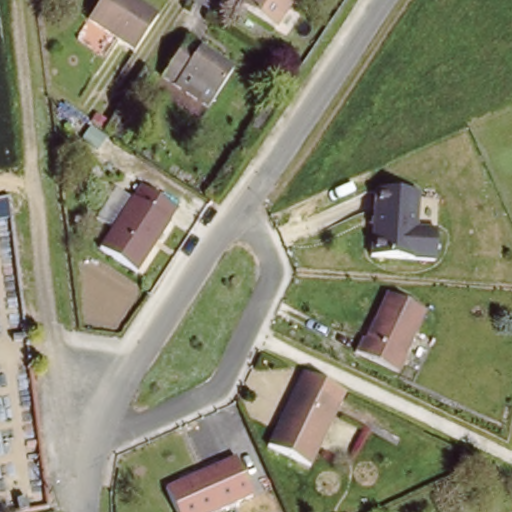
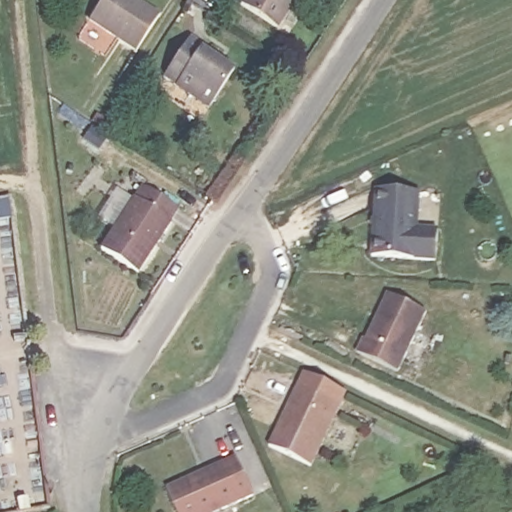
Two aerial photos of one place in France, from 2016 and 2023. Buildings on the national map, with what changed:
unchanged [(137,49),(92,18),(104,0),(139,0),(161,15),(137,49)]
unchanged [(241,1),(242,0),(291,0),(276,23),(241,1)]
unchanged [(214,60),(231,71),(209,106),(177,84),(185,72),(172,64),(155,52),(174,24),(190,35),(218,53),(214,60)]
unchanged [(179,209),(137,272),(102,248),(143,185),(179,209)]
unchanged [(421,193),(419,225),(439,227),(436,262),(371,256),(376,189),(421,193)]
unchanged [(427,308),(400,372),(354,352),(360,336),(367,339),(388,291),(427,308)]
unchanged [(311,463),(270,444),(309,370),(346,390),(311,463)]
unchanged [(248,498),(219,512),(168,512),(160,493),(230,461),(248,498)]

